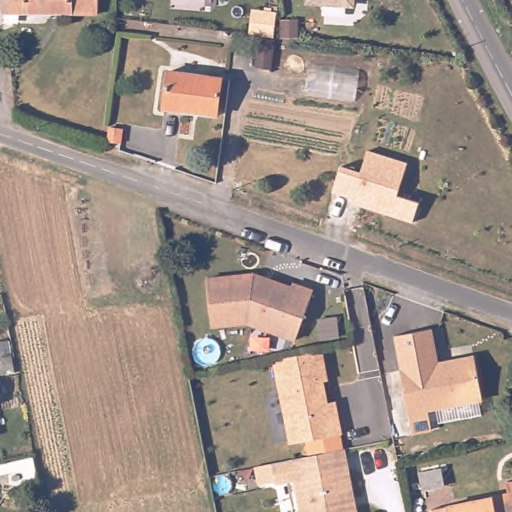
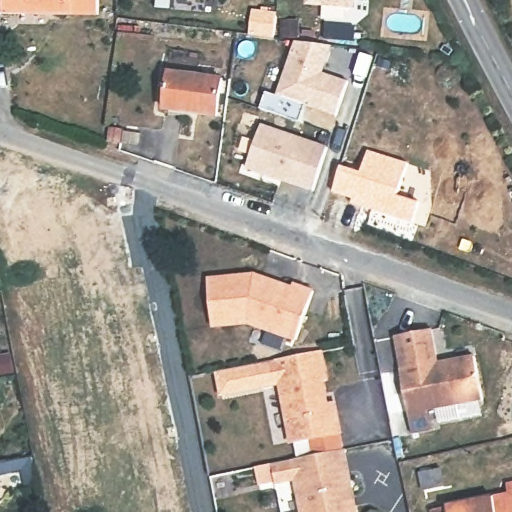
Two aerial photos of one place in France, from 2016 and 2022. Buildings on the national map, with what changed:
unchanged [(95,16),(49,15),(25,14),(3,13),(1,0),(96,0),(95,16)]
unchanged [(355,0),(348,6),(313,4),(313,0),(355,0)]
unchanged [(252,9),(275,13),(273,38),(249,35),(252,9)]
new [(294,40),(333,46),(324,72),(348,81),(337,116),(277,96),(294,40)]
demolished [(310,64),(361,71),(355,102),(305,95),(310,64)]
unchanged [(221,115),(172,109),(174,75),(224,80),(221,115)]
new [(260,123),(327,145),(313,191),(245,169),(260,123)]
unchanged [(352,204),(353,199),(333,193),(341,167),(361,173),(366,153),(406,164),(398,194),(418,200),(412,223),(352,204)]
unchanged [(252,275),(289,289),(290,285),(310,293),(292,341),(244,323),(209,325),(205,278),(252,275)]
unchanged [(437,327),(443,361),(481,357),(487,401),(413,412),(406,368),(409,368),(404,331),(437,327)]
unchanged [(322,351),(328,380),(323,381),(328,405),(335,403),(341,434),(290,443),(275,360),(322,351)]
new [(275,360),(279,384),(219,396),(213,371),(275,360)]
unchanged [(304,512),(298,480),(279,483),(276,464),(343,452),(348,452),(353,480),(355,493),(358,511),(358,512),(304,512)]
unchanged [(41,483),(29,485),(25,470),(0,476),(0,464),(36,457),(41,483)]
unchanged [(448,504),(511,493),(509,484),(512,484),(512,512),(436,512),(435,507),(448,504)]

